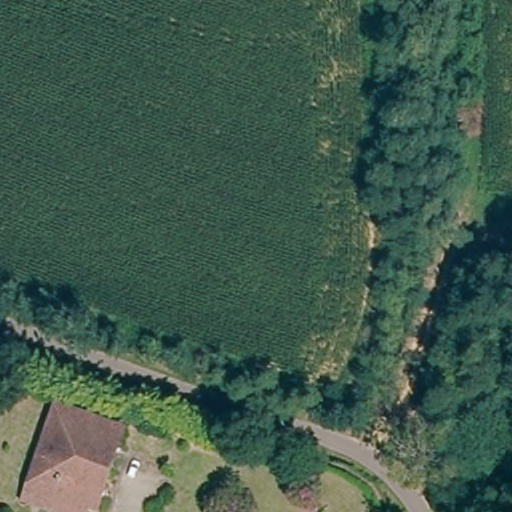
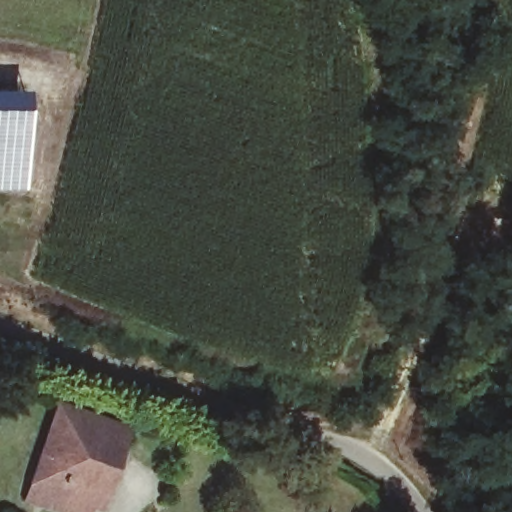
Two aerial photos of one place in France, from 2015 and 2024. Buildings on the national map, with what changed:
new [(25,189),(0,189),(0,90),(24,90),(25,189)]
unchanged [(126,426),(100,505),(38,483),(63,405),(126,426)]
unchanged [(98,512),(70,512),(33,499),(38,483),(100,505),(98,512)]

